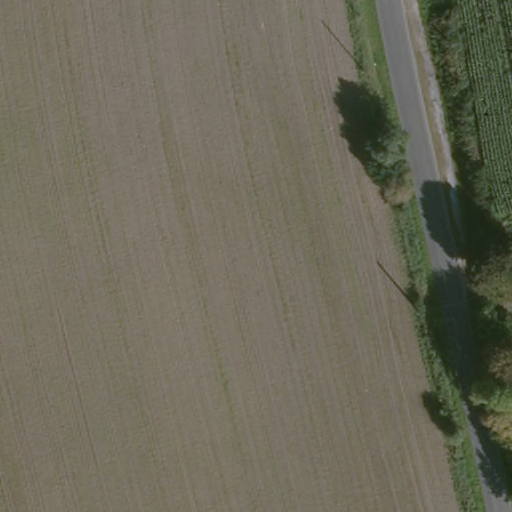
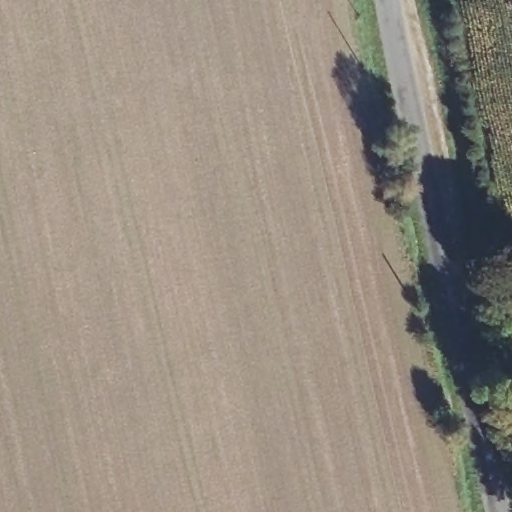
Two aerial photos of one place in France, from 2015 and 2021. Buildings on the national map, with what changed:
unchanged [(512,271),(512,295),(500,283),(512,271)]

